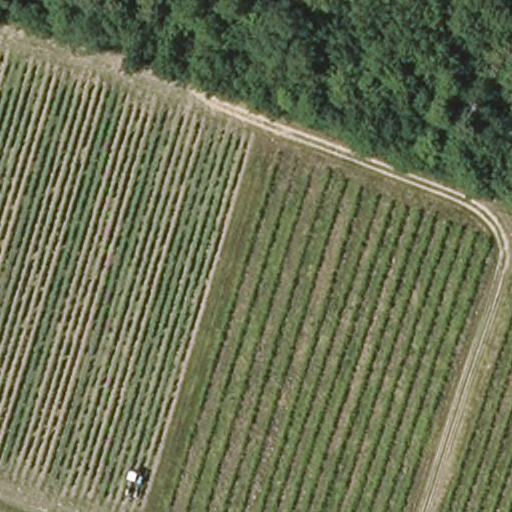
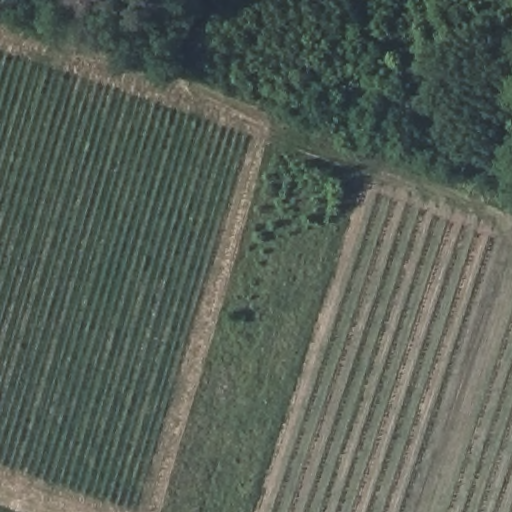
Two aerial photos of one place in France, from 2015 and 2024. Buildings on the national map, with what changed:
[]

